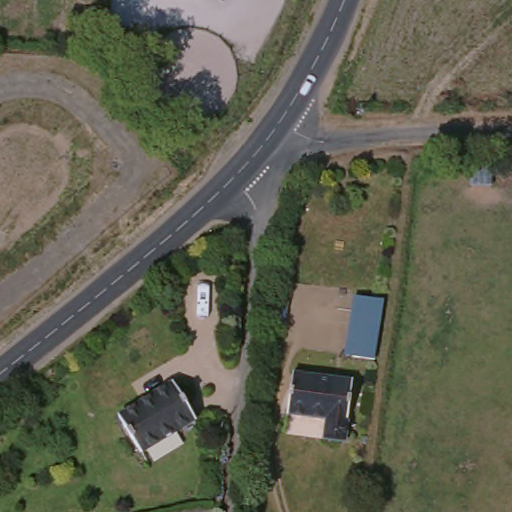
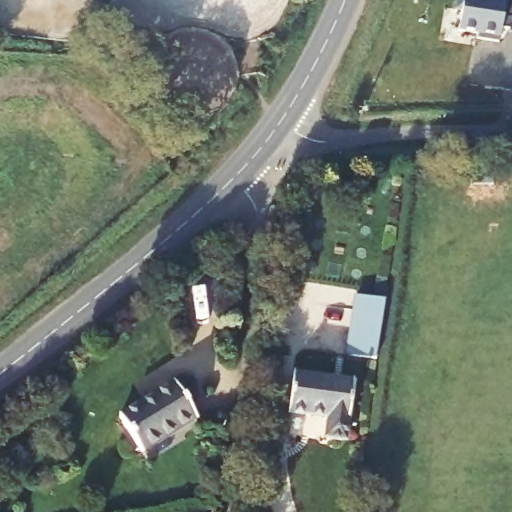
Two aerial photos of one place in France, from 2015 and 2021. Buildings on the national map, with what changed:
new [(509,0),(512,0),(512,19),(511,19),(509,30),(502,29),(499,42),(477,39),(478,34),(459,31),(462,11),(456,10),(457,0),(509,0)]
unchanged [(379,357),(349,352),(358,297),(387,300),(379,357)]
unchanged [(357,437),(332,437),(333,417),(296,415),(298,371),(359,377),(357,437)]
unchanged [(205,416),(153,453),(124,416),(178,376),(205,416)]

